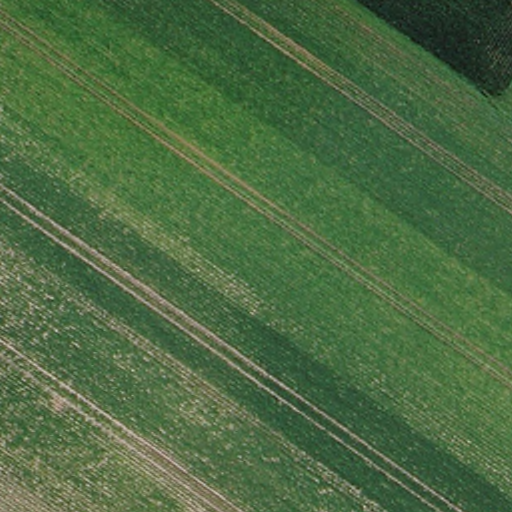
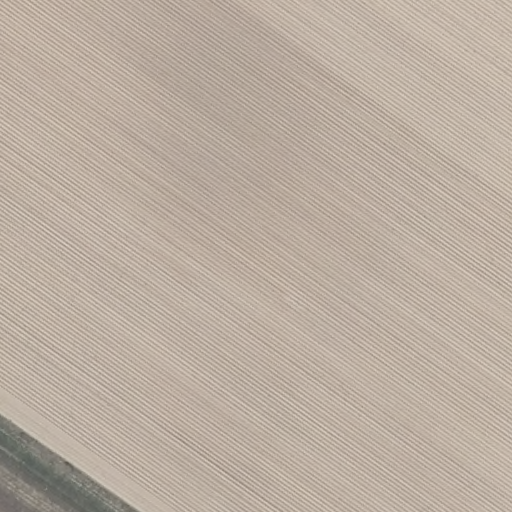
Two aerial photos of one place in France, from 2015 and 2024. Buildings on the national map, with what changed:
[]

